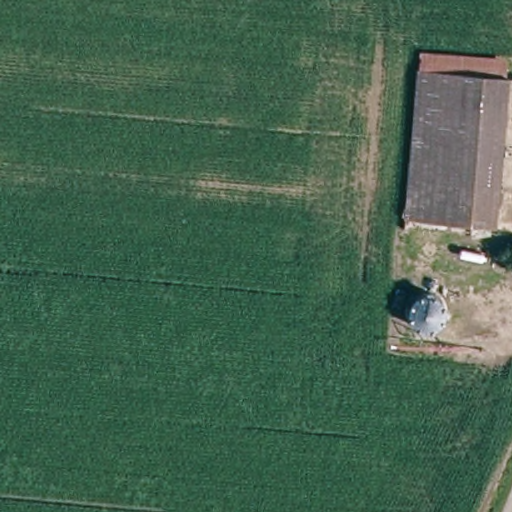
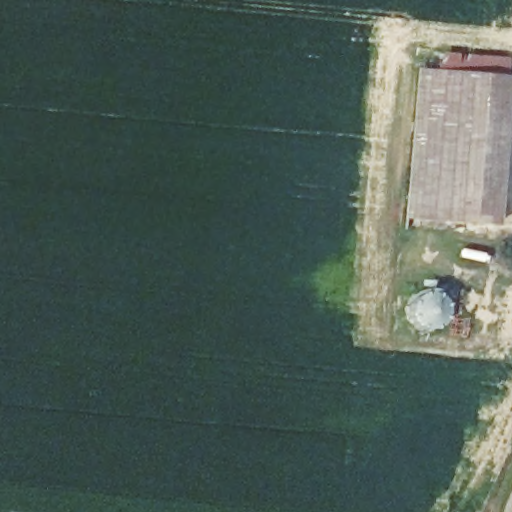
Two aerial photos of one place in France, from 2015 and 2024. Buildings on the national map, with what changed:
unchanged [(408,219),(409,206),(422,60),(507,66),(499,214),(472,211),(470,224),(408,219)]
unchanged [(426,290),(429,290),(432,290),(435,290),(438,290),(441,292),(444,293),(445,295),(448,298),(449,301),(450,305),(450,307),(450,311),(449,314),(448,316),(446,320),(444,321),(441,323),(438,325),(435,325),(432,326),(429,325),(426,325),(423,323),(420,321),(418,320),(416,316),(415,314),(414,311),(414,307),(414,305),(415,301),(416,298),(418,296),(420,293),(423,292),(426,290)]

